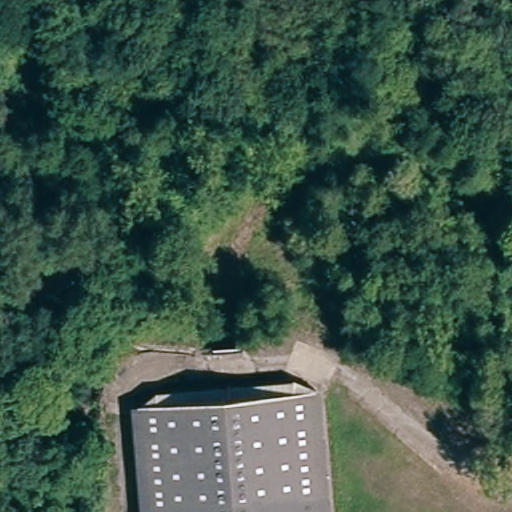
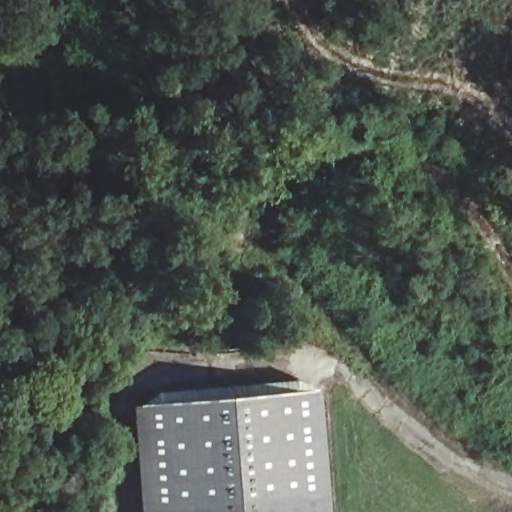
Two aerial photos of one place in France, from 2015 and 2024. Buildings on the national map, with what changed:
unchanged [(146,409),(288,393),(304,409),(316,512),(145,512),(134,421),(146,409)]

